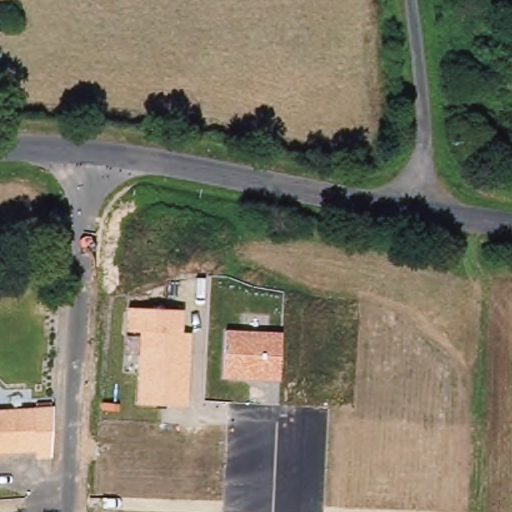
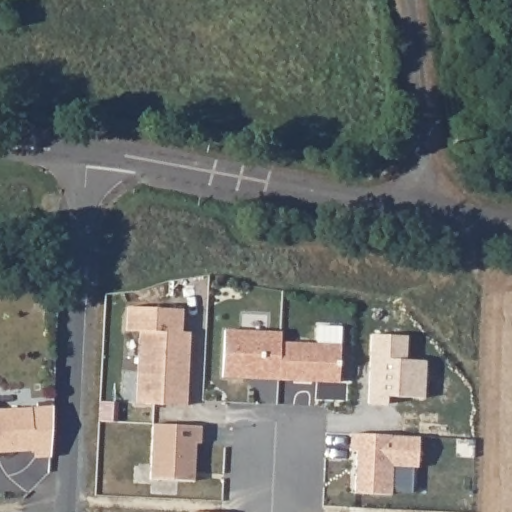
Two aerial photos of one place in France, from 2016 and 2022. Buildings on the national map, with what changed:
unchanged [(140,332),(126,332),(129,308),(184,311),(182,334),(191,334),(189,407),(136,404),(140,332)]
unchanged [(281,379),(223,377),(226,330),(282,333),(281,379)]
new [(406,334),(405,359),(426,359),(425,397),(390,396),(390,403),(373,402),(375,333),(406,334)]
new [(340,382),(281,379),(282,342),(342,344),(340,382)]
unchanged [(55,407),(54,459),(37,459),(36,451),(32,451),(30,408),(55,407)]
unchanged [(32,451),(0,452),(0,410),(30,408),(32,451)]
new [(205,424),(205,441),(197,439),(196,479),(152,477),(155,423),(205,424)]
new [(421,435),(420,465),(393,465),(392,496),(355,494),(356,451),(350,452),(351,433),(421,435)]
new [(227,512),(189,512),(190,510),(227,512)]

